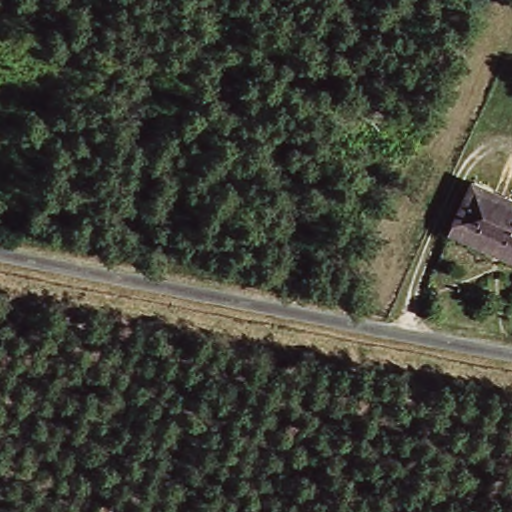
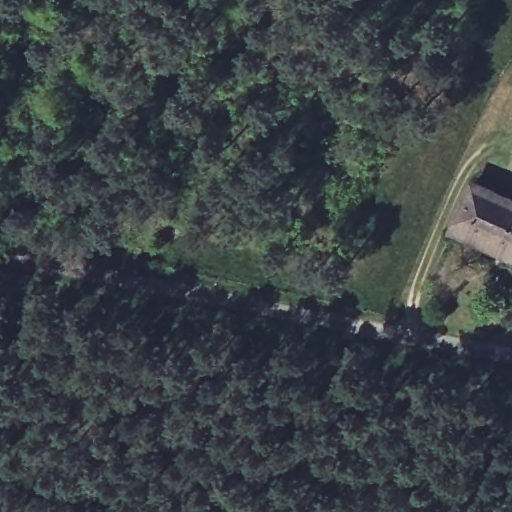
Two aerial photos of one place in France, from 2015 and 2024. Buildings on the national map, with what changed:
unchanged [(512,208),(512,262),(452,235),(472,190),(512,208)]

